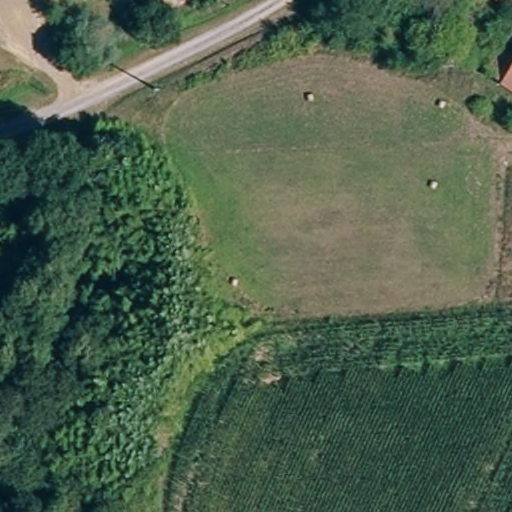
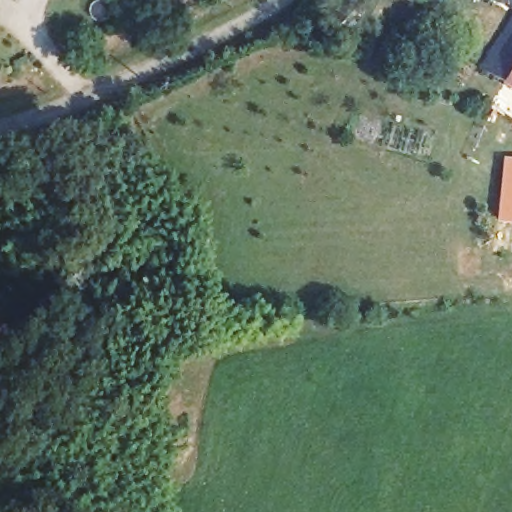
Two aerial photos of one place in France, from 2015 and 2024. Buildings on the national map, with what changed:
unchanged [(512,1),(511,0),(512,0),(512,1)]
unchanged [(512,22),(512,89),(480,68),(512,22)]
new [(512,159),(512,224),(495,223),(502,158),(512,159)]
demolished [(512,162),(512,222),(508,222),(512,162)]

